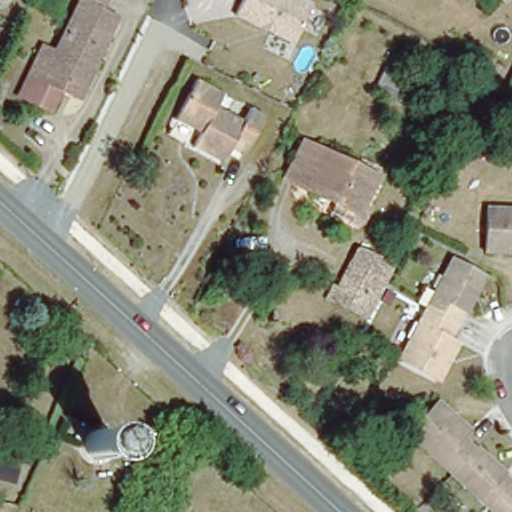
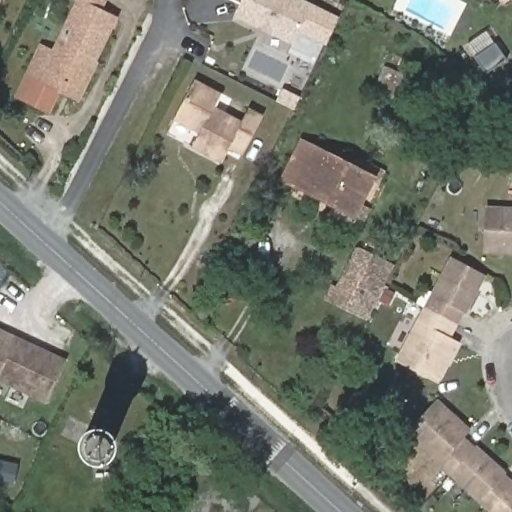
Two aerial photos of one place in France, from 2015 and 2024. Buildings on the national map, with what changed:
unchanged [(50,115),(17,101),(30,73),(41,48),(54,53),(75,4),(76,0),(107,0),(100,14),(115,19),(82,96),(79,103),(59,94),(50,115)]
unchanged [(293,43),(235,18),(244,0),(307,0),(312,3),(293,43)]
unchanged [(512,2),(504,8),(499,0),(512,0),(512,2)]
unchanged [(190,78),(195,80),(214,89),(218,91),(210,108),(239,121),(247,105),(261,112),(244,150),(230,145),(223,156),(193,142),(199,130),(171,115),(190,78)]
unchanged [(357,221),(348,225),(323,213),(329,203),(326,202),(308,193),(285,181),(275,176),(295,136),(305,141),(350,164),(355,155),(379,166),(373,178),(367,175),(354,201),(364,207),(357,221)]
unchanged [(505,247),(501,247),(500,246),(481,245),(483,202),(512,203),(512,239),(505,239),(505,247)]
unchanged [(382,266),(363,306),(337,294),(336,293),(355,253),(357,254),(382,266)]
unchanged [(446,257),(470,268),(476,272),(451,321),(445,334),(451,337),(446,347),(436,364),(436,366),(432,373),(395,354),(420,305),(446,257)]
new [(68,368),(49,405),(1,380),(0,382),(0,331),(68,368)]
unchanged [(436,401),(440,404),(466,427),(465,429),(461,434),(463,436),(469,441),(472,444),(479,450),(512,479),(512,512),(500,512),(492,505),(450,468),(407,431),(436,401)]

